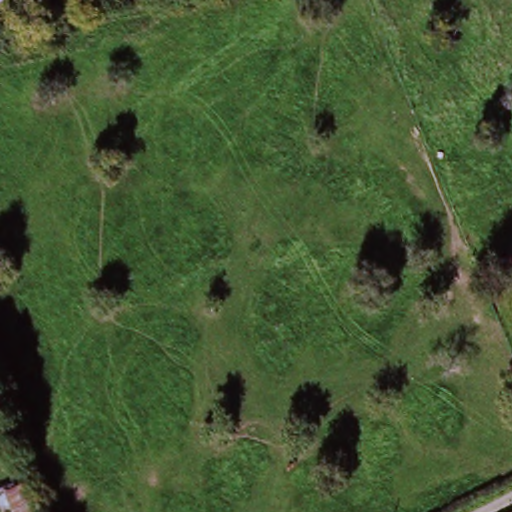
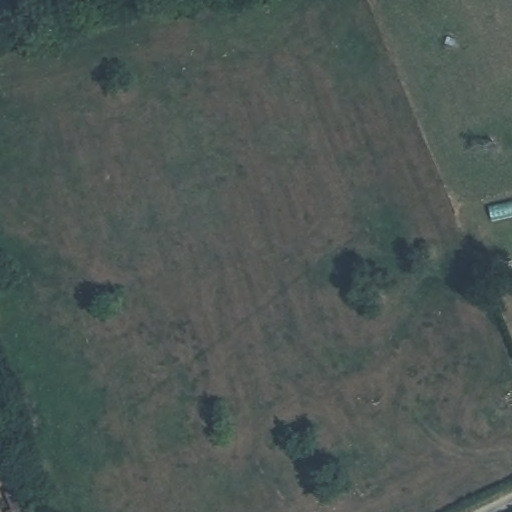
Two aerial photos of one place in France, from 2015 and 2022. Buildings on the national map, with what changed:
[]

